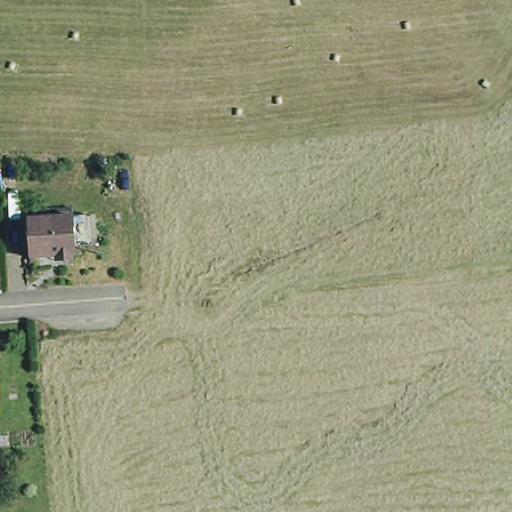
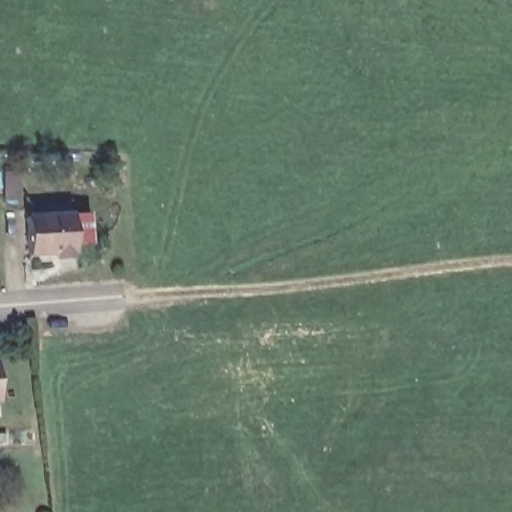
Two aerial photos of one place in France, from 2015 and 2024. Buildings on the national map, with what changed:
unchanged [(50,262),(50,256),(25,258),(24,219),(24,209),(68,208),(68,217),(68,255),(68,261),(50,262)]

